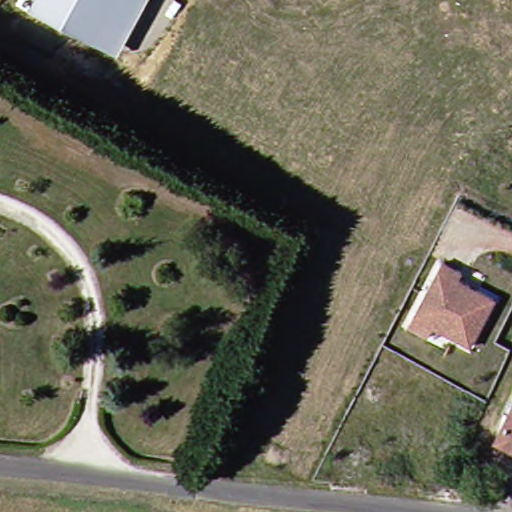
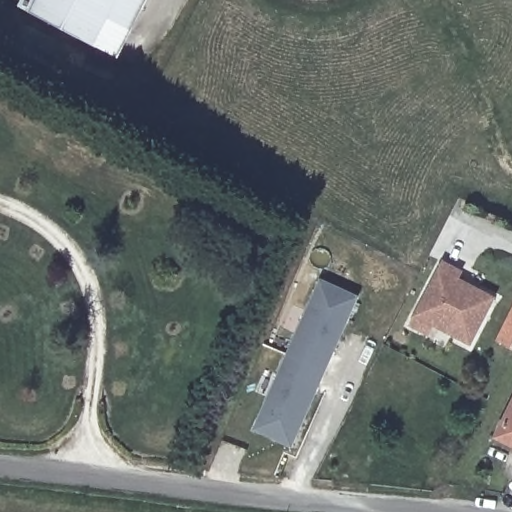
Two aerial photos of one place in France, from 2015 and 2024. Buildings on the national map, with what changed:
unchanged [(17,6),(21,0),(147,0),(117,58),(17,6)]
unchanged [(411,319),(414,314),(446,261),(465,272),(460,279),(472,286),(479,290),(497,300),(469,346),(433,325),(430,330),(411,319)]
new [(321,281),(358,299),(290,449),(252,432),(321,281)]
unchanged [(503,447),(484,437),(512,385),(512,452),(503,447)]

